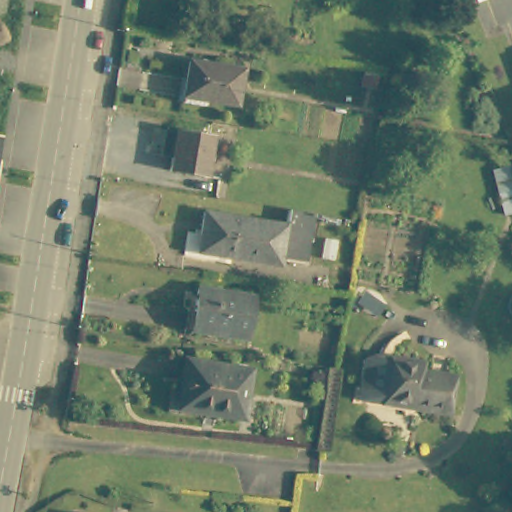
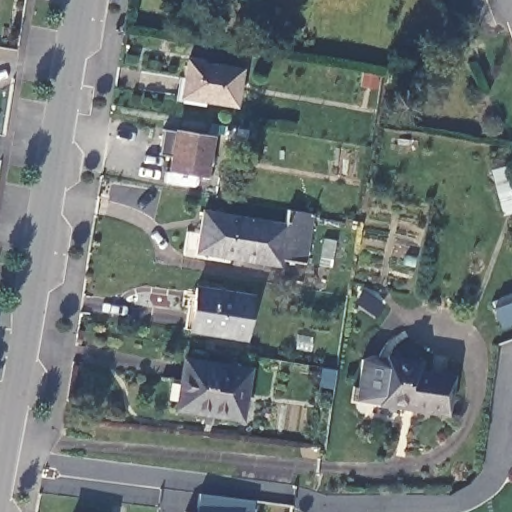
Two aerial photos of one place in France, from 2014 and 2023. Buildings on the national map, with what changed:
unchanged [(238,68),(232,103),(178,95),(183,59),(238,68)]
unchanged [(208,136),(202,175),(166,170),(172,130),(208,136)]
unchanged [(198,229),(202,207),(283,220),(286,205),(294,206),(286,257),(261,253),(260,259),(200,248),(203,230),(198,229)]
unchanged [(253,296),(246,336),(191,327),(198,287),(253,296)]
unchanged [(418,362),(417,370),(451,376),(445,411),(411,406),(411,403),(383,398),(382,402),(357,398),(365,354),(418,362)]
unchanged [(244,369),(236,418),(213,414),(213,409),(174,403),(182,359),(244,369)]
new [(199,493),(253,500),(251,512),(195,512),(199,493)]
new [(183,511),(191,512),(183,512),(183,511)]

